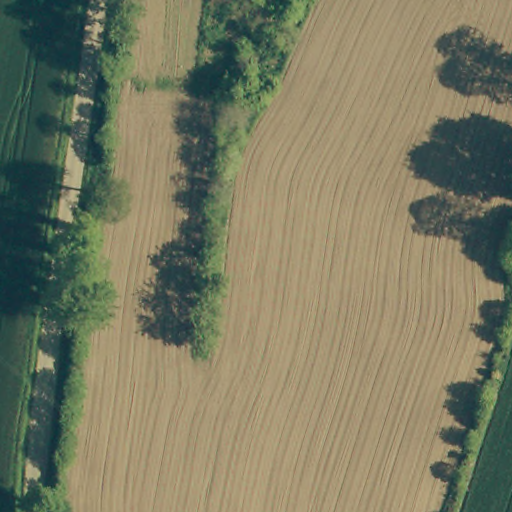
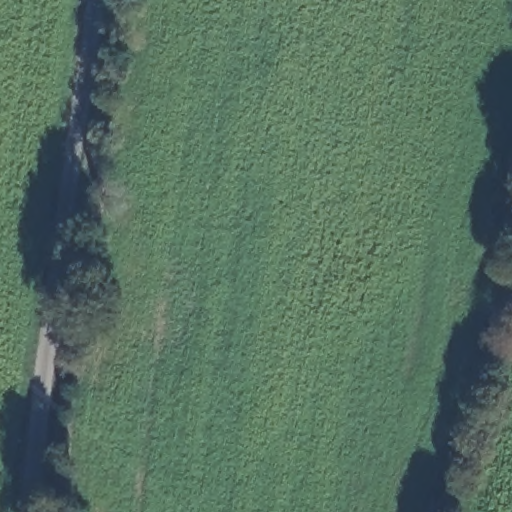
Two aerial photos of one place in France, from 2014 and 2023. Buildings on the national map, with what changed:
[]

